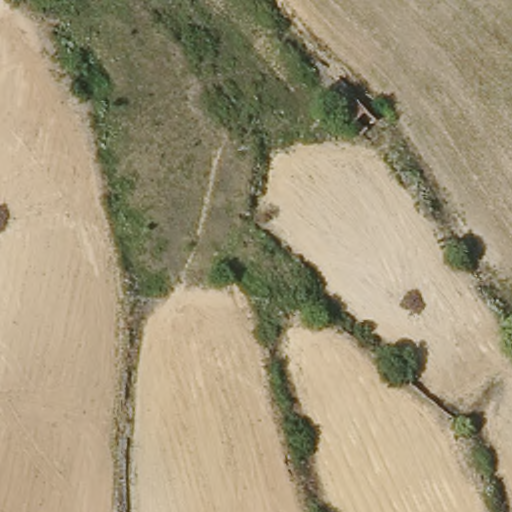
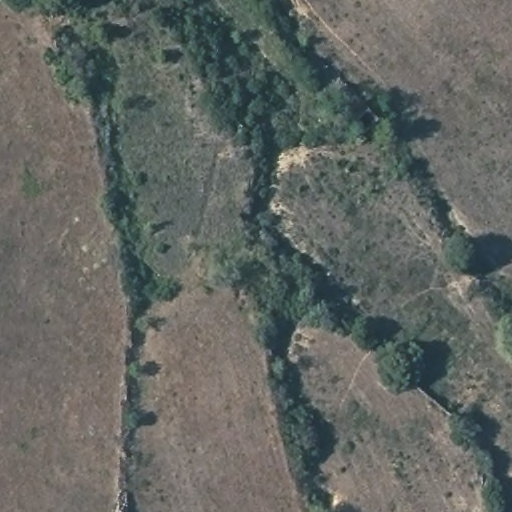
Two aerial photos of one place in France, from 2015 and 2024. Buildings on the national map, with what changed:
unchanged [(348,108),(344,101),(361,90),(372,106),(354,119),(348,108)]

